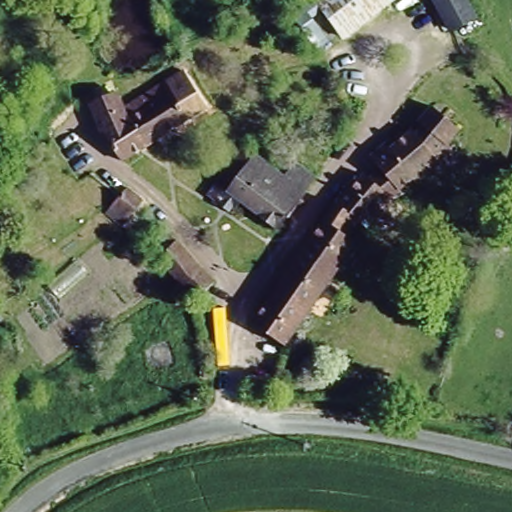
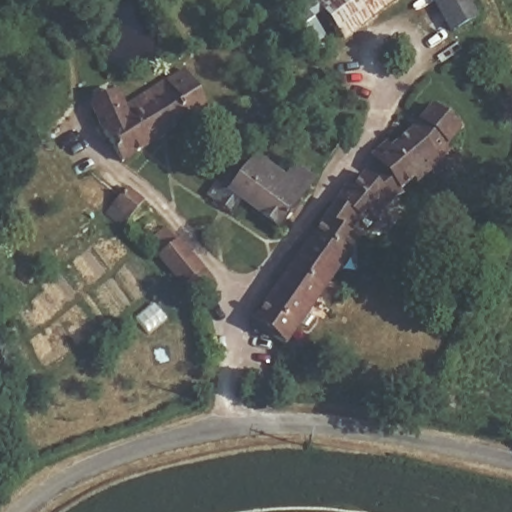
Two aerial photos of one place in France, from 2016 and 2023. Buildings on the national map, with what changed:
unchanged [(330,24),(313,0),(363,0),(330,24)]
unchanged [(470,17),(450,35),(425,0),(460,0),(470,17)]
unchanged [(107,91),(114,97),(135,80),(145,91),(145,92),(163,76),(182,100),(167,115),(142,139),(123,157),(85,106),(107,91)]
unchanged [(416,170),(389,140),(413,109),(445,134),(416,170)]
unchanged [(374,223),(345,199),(389,140),(416,170),(374,223)]
unchanged [(226,185),(258,152),(267,160),(306,194),(314,200),(284,237),(243,200),(225,218),(210,201),(226,185)]
unchanged [(98,185),(115,172),(155,219),(133,238),(127,242),(102,213),(112,203),(98,185)]
unchanged [(345,199),(374,223),(334,274),(305,252),(345,199)]
unchanged [(160,267),(164,263),(185,244),(215,277),(187,300),(160,267)]
unchanged [(305,252),(334,274),(292,326),(265,305),(305,252)]

